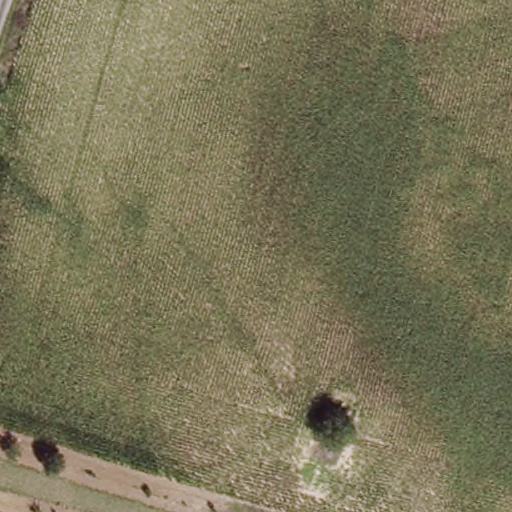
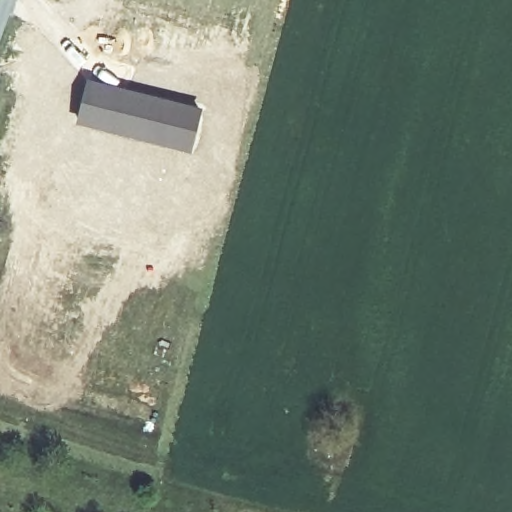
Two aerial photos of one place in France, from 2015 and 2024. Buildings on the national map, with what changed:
new [(87,77),(202,108),(191,150),(75,122),(87,77)]

